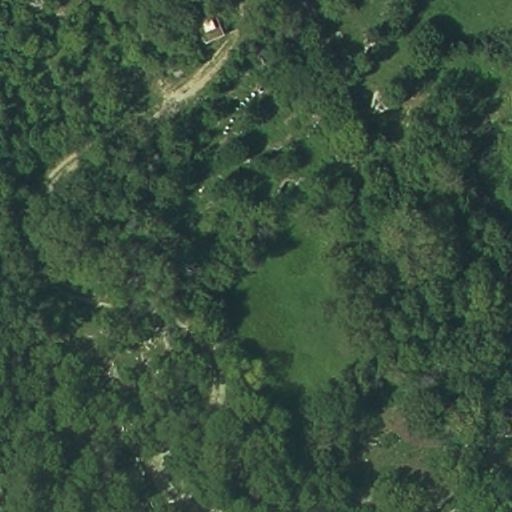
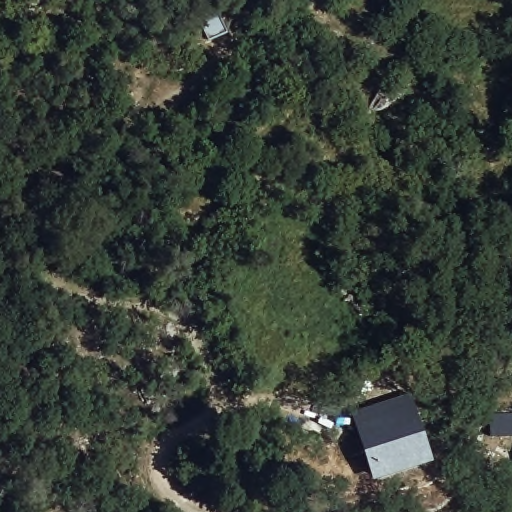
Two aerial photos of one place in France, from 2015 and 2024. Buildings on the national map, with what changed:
unchanged [(197,22),(220,13),(228,37),(206,48),(197,22)]
new [(427,462),(377,479),(357,417),(408,401),(427,462)]

